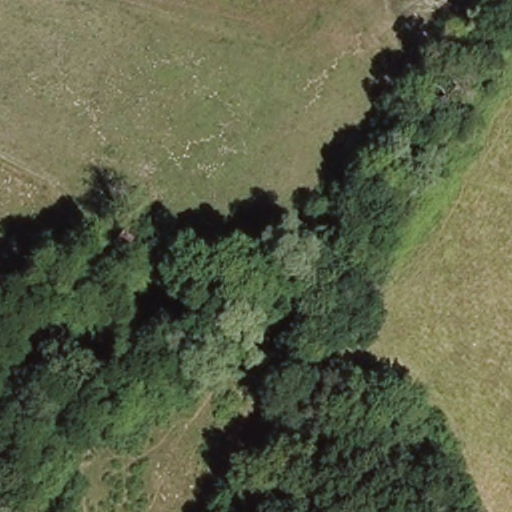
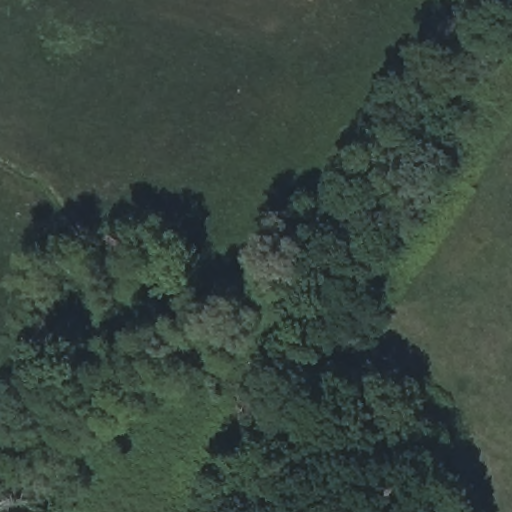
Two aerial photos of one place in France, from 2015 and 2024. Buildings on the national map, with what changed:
[]

